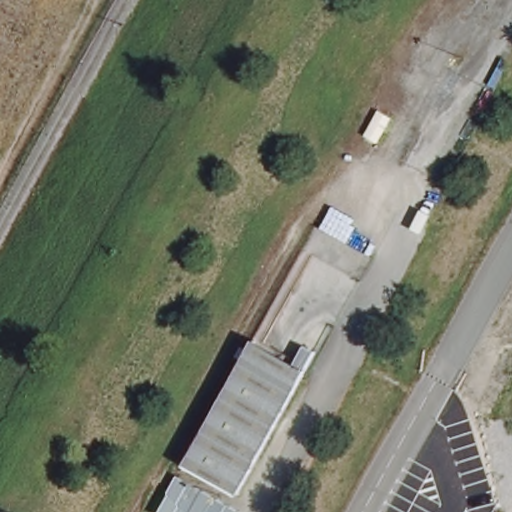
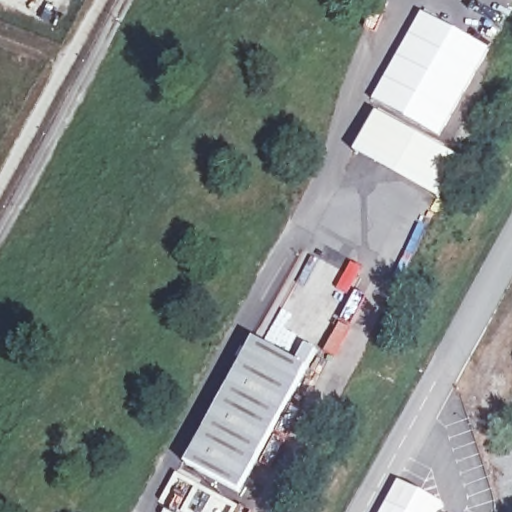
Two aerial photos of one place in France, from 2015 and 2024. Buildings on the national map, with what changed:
new [(422,11),(492,50),(440,139),(371,101),(422,11)]
new [(376,111),(463,161),(440,202),(353,151),(376,111)]
unchanged [(185,464),(242,359),(235,355),(240,346),(247,350),(253,339),(307,369),(302,379),(239,494),(185,464)]
new [(445,504),(440,512),(380,512),(398,479),(445,504)]

